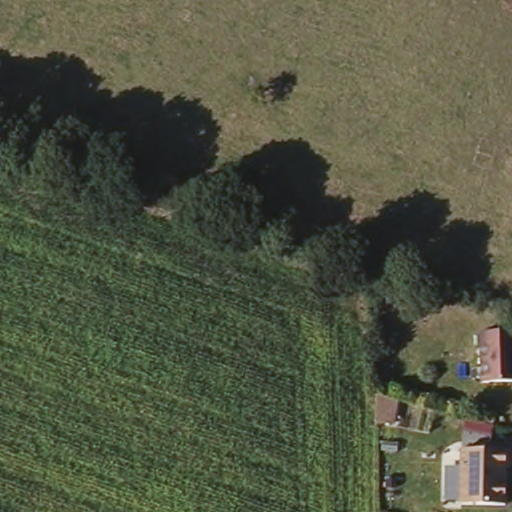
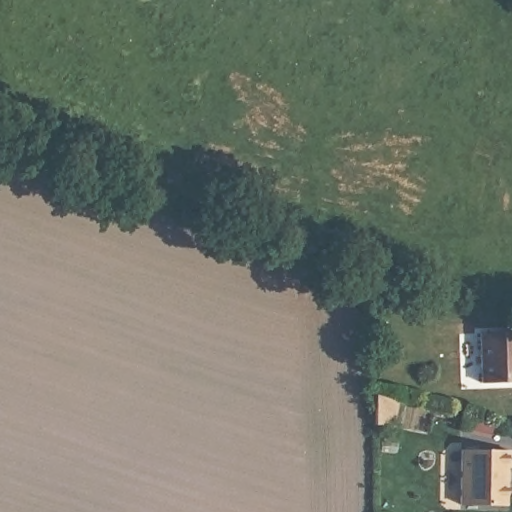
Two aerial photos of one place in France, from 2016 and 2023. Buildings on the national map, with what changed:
unchanged [(512,328),(512,378),(482,379),(480,329),(512,328)]
unchanged [(512,448),(512,466),(511,466),(510,504),(467,503),(467,446),(512,448)]

